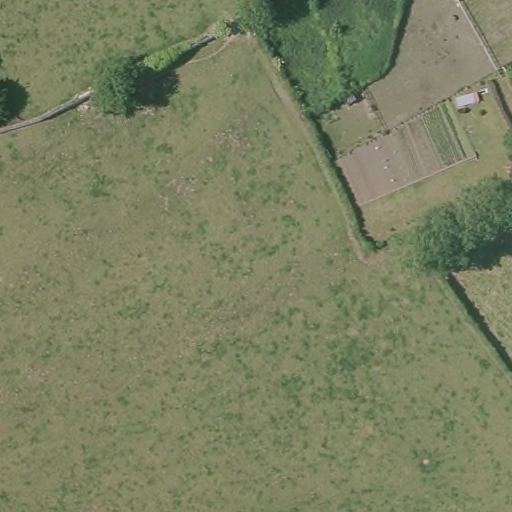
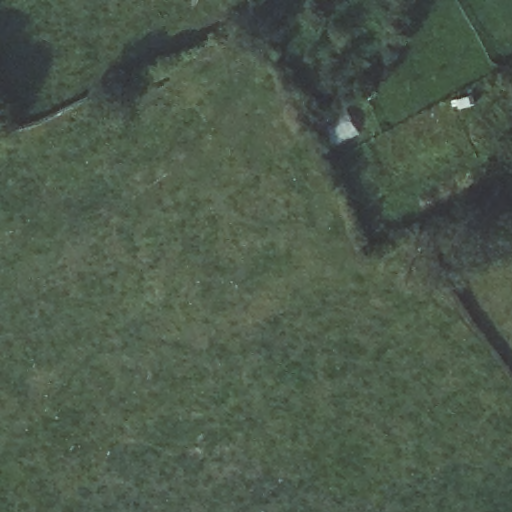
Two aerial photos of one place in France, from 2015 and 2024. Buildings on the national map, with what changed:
[]

